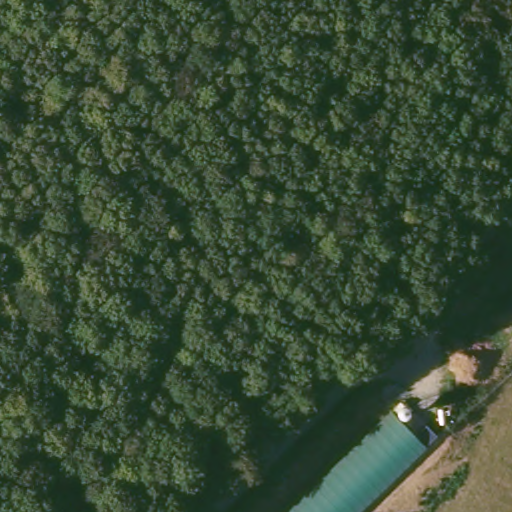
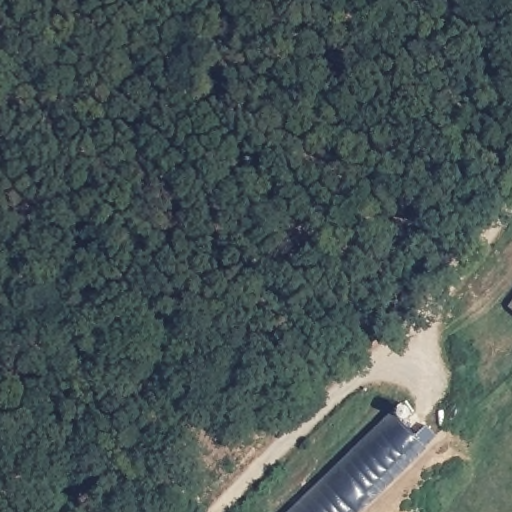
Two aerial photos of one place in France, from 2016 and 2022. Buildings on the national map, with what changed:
unchanged [(512,299),(512,312),(505,307),(512,299)]
unchanged [(395,411),(418,435),(430,425),(438,435),(428,445),(358,512),(291,512),(395,411)]

